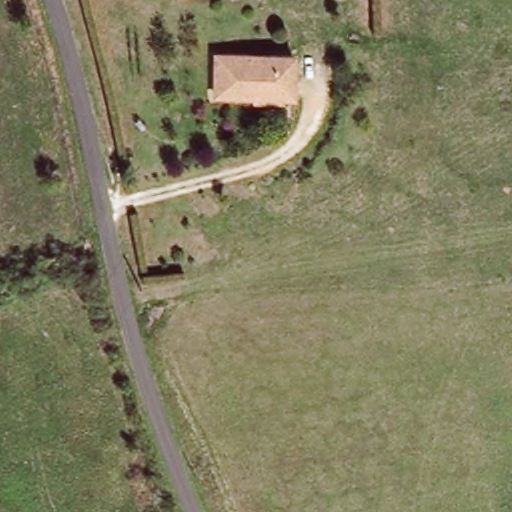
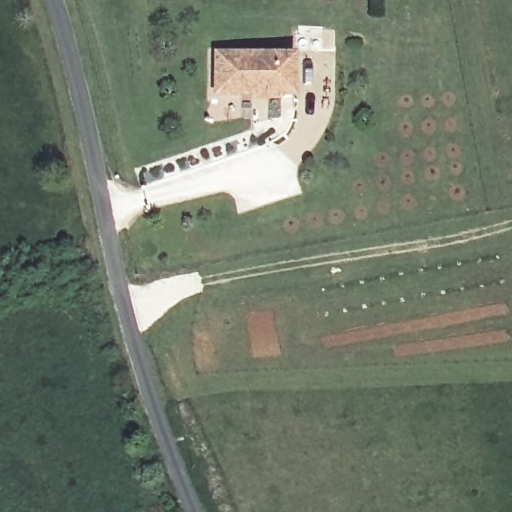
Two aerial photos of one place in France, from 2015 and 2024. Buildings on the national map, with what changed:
unchanged [(300,45),(301,86),(225,86),(224,46),(300,45)]

